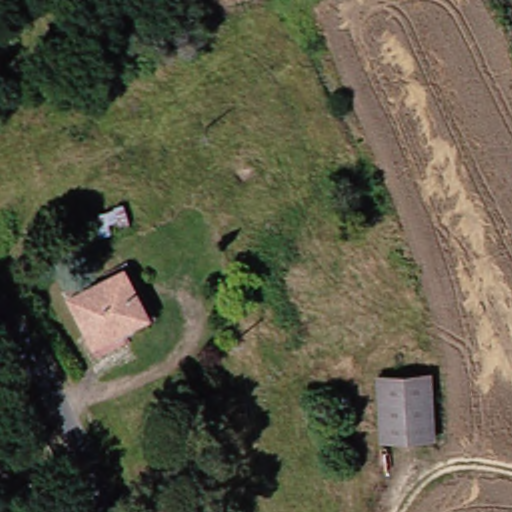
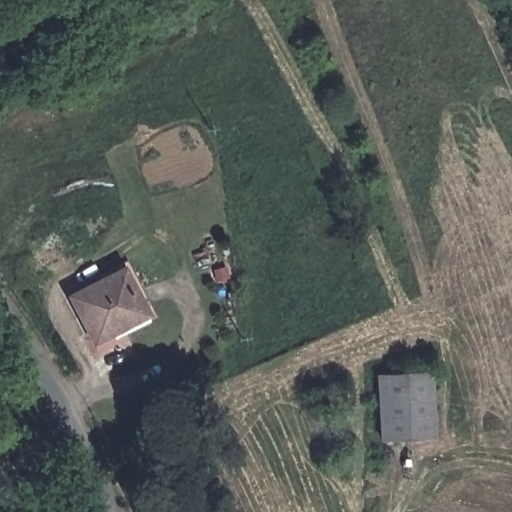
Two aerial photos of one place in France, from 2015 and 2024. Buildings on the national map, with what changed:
unchanged [(76,289),(124,267),(146,313),(98,337),(76,289)]
unchanged [(375,374),(429,364),(443,429),(390,440),(375,374)]

